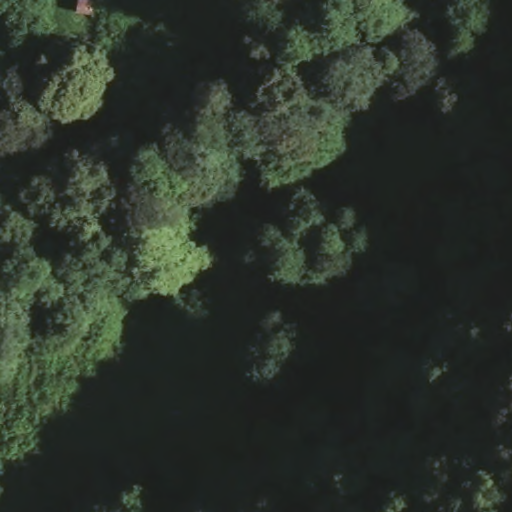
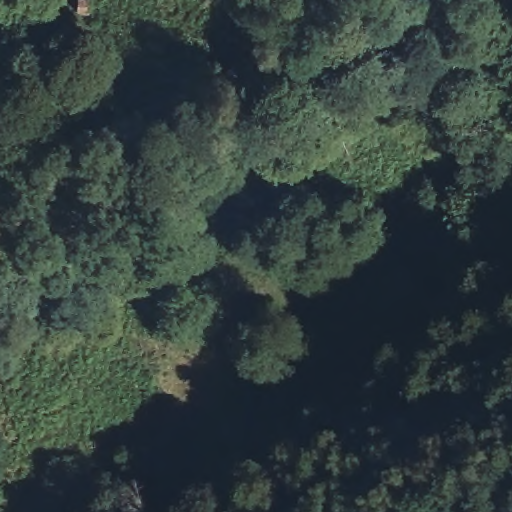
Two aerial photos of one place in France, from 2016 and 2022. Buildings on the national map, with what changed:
unchanged [(89,21),(74,18),(77,0),(86,0),(92,1),(89,21)]

